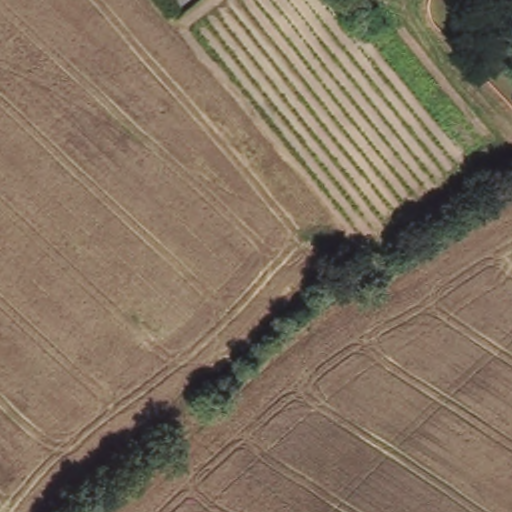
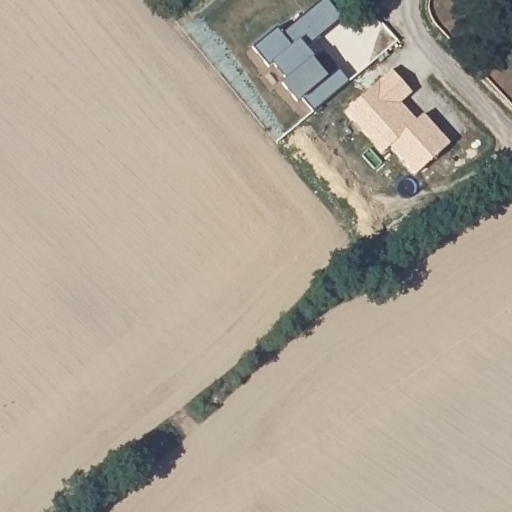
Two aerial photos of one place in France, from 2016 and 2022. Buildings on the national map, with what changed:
new [(282,33),(323,0),(327,0),(343,18),(305,48),(313,57),(328,74),(296,101),(281,84),(286,80),(271,63),(268,65),(254,48),(277,29),(282,33)]
new [(450,143),(416,175),(389,146),(381,152),(344,111),(392,69),(413,92),(401,102),(416,119),(423,114),(450,143)]

